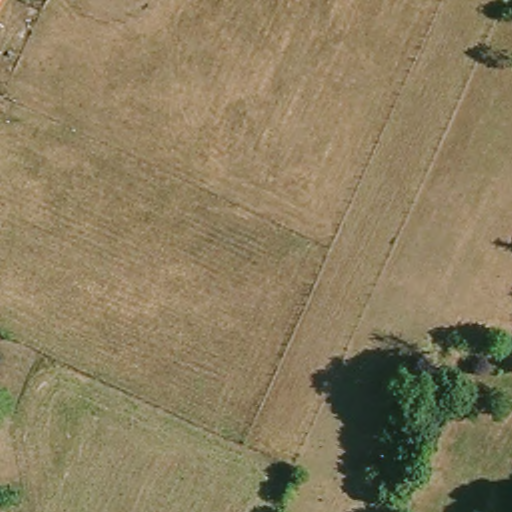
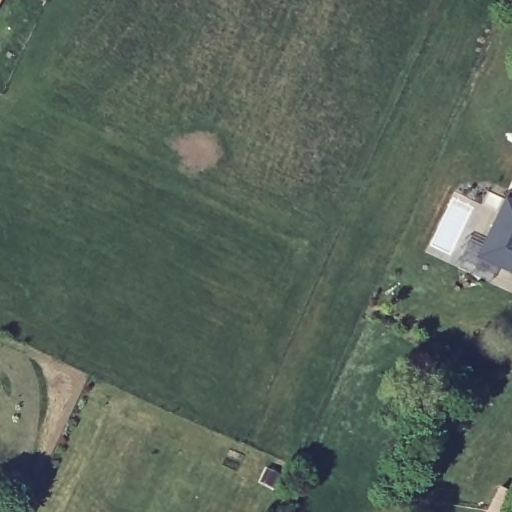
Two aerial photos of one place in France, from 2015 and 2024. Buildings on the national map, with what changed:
new [(512,272),(477,255),(503,200),(512,204),(512,272)]

